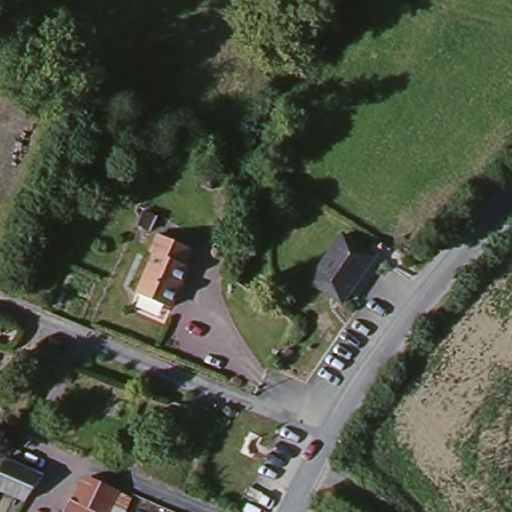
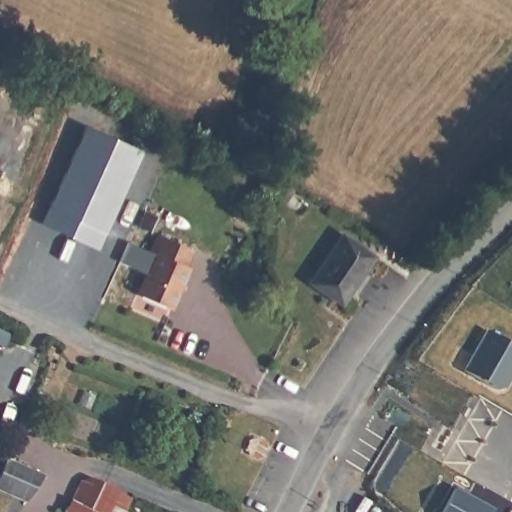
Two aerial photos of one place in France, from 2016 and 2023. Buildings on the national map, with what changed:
new [(142,151),(98,249),(43,224),(86,126),(142,151)]
unchanged [(191,245),(184,262),(187,262),(170,303),(137,290),(154,250),(149,249),(157,230),(191,245)]
unchanged [(373,252),(342,298),(310,277),(342,230),(373,252)]
new [(152,253),(144,272),(120,261),(128,242),(152,253)]
new [(512,377),(503,392),(464,371),(487,330),(512,344),(512,377)]
unchanged [(38,476),(21,503),(0,494),(0,461),(0,460),(38,476)]
unchanged [(88,479),(93,479),(96,481),(123,492),(130,498),(124,510),(112,505),(110,512),(65,512),(77,487),(88,479)]
new [(495,512),(443,512),(454,487),(496,510),(495,512)]

